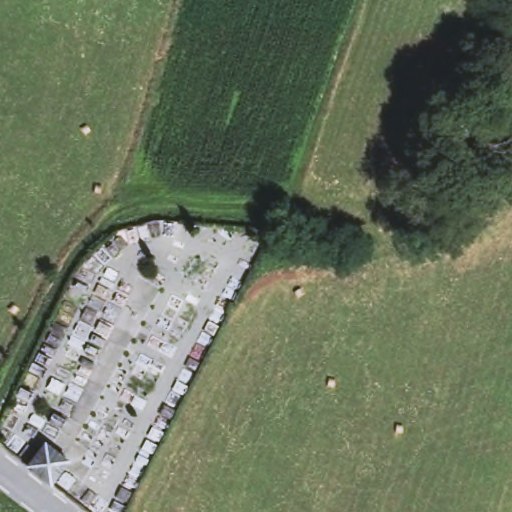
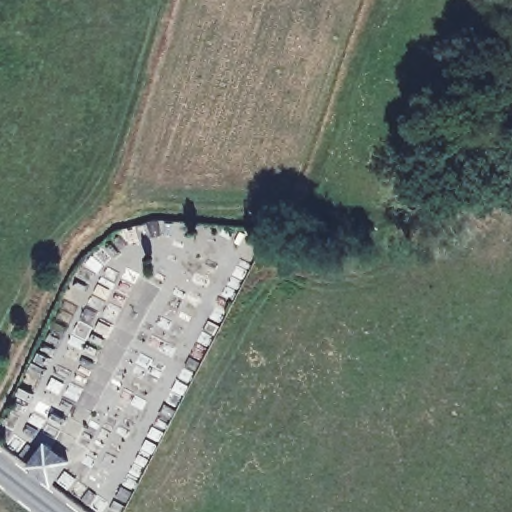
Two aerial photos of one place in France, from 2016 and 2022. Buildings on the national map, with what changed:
unchanged [(29,468),(47,443),(73,462),(54,487),(29,468)]

